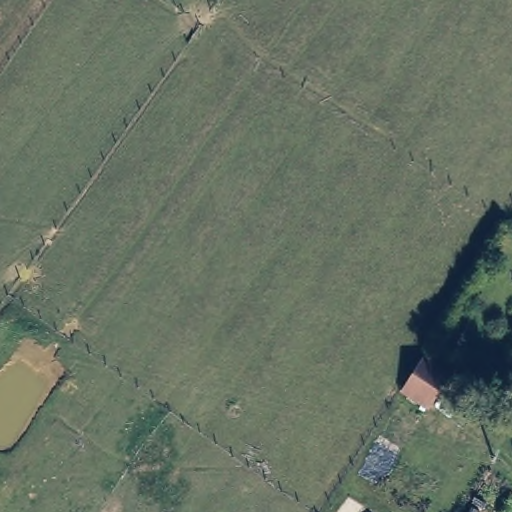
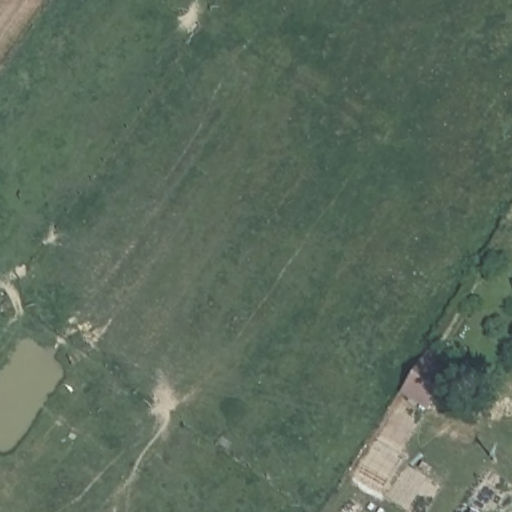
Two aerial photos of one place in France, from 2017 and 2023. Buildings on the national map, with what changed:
unchanged [(449,372),(428,407),(403,390),(424,356),(449,372)]

